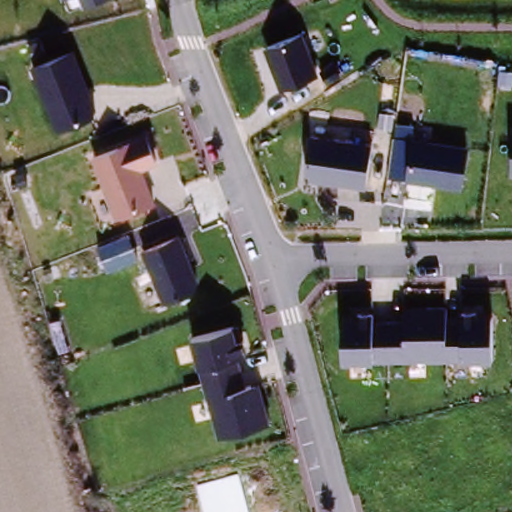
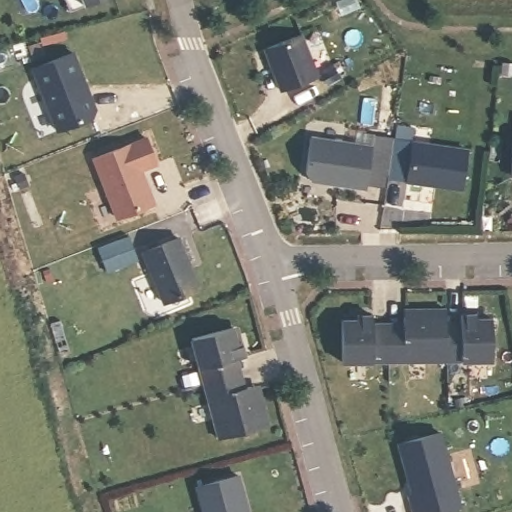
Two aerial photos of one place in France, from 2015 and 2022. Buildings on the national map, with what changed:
unchanged [(67,0),(100,0),(71,11),(67,0)]
unchanged [(318,79),(281,92),(267,48),(303,35),(318,79)]
unchanged [(29,64),(72,48),(97,116),(53,129),(29,64)]
unchanged [(396,121),(418,125),(417,139),(469,148),(461,188),(388,177),(396,121)]
unchanged [(307,133),(371,143),(363,187),(302,178),(307,133)]
unchanged [(512,173),(509,173),(512,134),(512,173)]
unchanged [(115,219),(95,159),(147,136),(157,164),(142,170),(155,203),(115,219)]
unchanged [(142,250),(180,234),(199,289),(163,302),(142,250)]
unchanged [(493,362),(462,362),(462,357),(375,359),(375,367),(342,365),(343,315),(371,314),(371,322),(404,320),(403,314),(492,313),(493,362)]
unchanged [(217,441),(192,341),(240,329),(248,360),(238,363),(245,389),(259,385),(268,426),(217,441)]
new [(440,433),(460,507),(444,512),(414,512),(412,503),(415,502),(399,445),(440,433)]
new [(240,475),(250,512),(202,512),(195,486),(240,475)]

